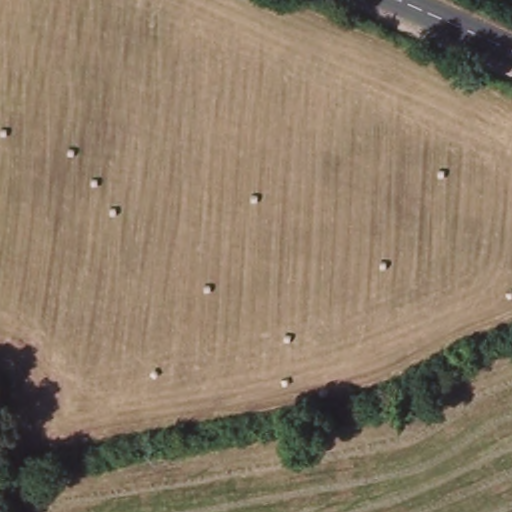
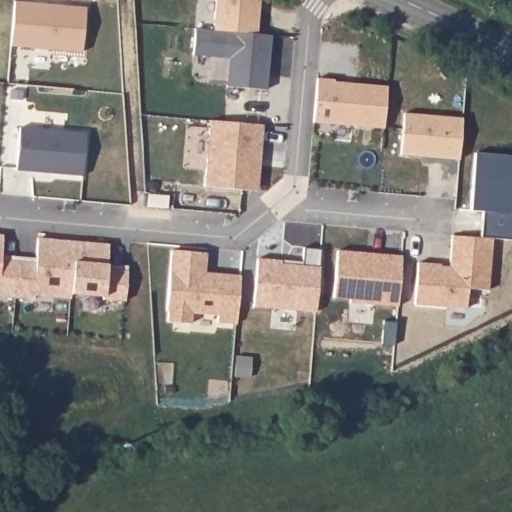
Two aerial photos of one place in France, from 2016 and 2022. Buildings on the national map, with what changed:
new [(14,0),(85,8),(81,53),(11,46),(14,0)]
new [(215,0),(258,0),(256,31),(270,34),(266,89),(227,87),(230,58),(192,54),(195,29),(213,30),(215,0)]
new [(334,81),(334,83),(358,85),(387,88),(383,129),(313,123),(317,79),(334,81)]
new [(400,155),(404,114),(463,118),(459,161),(400,155)]
new [(251,192),(204,188),(210,121),(263,126),(261,143),(257,192),(251,192)]
new [(16,170),(20,129),(85,133),(83,176),(16,170)]
new [(512,157),(512,187),(510,214),(512,214),(512,241),(480,238),(482,212),(470,211),(475,154),(512,157)]
new [(452,235),(492,242),(488,292),(468,289),(466,310),(413,305),(418,264),(449,267),(452,235)]
new [(3,237),(1,262),(19,263),(16,299),(0,298),(0,236),(3,237)]
new [(19,263),(36,264),(38,239),(75,243),(71,295),(71,299),(34,297),(34,300),(16,299),(19,263)]
new [(75,243),(109,245),(107,270),(128,272),(126,302),(104,300),(104,298),(71,295),(75,243)]
new [(316,313),(254,308),(257,259),(302,263),(304,248),(320,250),(316,313)]
new [(207,254),(205,274),(222,275),(241,277),(237,324),(218,323),(218,315),(192,314),(191,324),(168,323),(169,312),(167,312),(172,251),(207,254)]
new [(376,254),(384,255),(402,257),(398,307),(350,303),(350,300),(333,299),(337,252),(376,254)]

